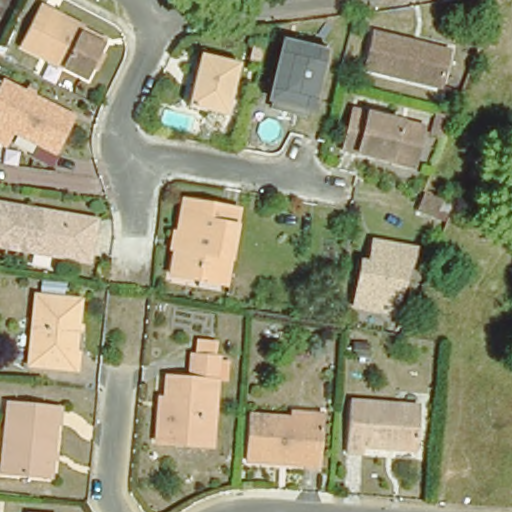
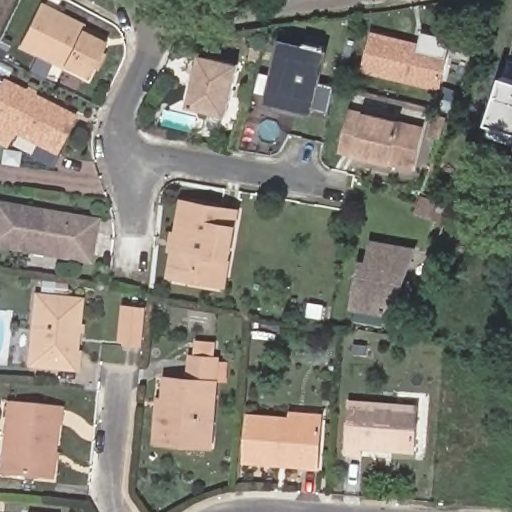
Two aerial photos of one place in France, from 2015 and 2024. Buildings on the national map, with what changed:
unchanged [(100,64),(95,75),(25,41),(45,0),(63,9),(89,21),(86,25),(114,38),(111,43),(108,48),(114,50),(105,68),(100,64)]
unchanged [(373,58),(383,20),(432,33),(460,40),(458,48),(450,78),(373,58)]
unchanged [(270,102),(272,93),(285,40),(305,45),(307,38),(327,42),(312,102),(310,111),(270,102)]
unchanged [(201,50),(240,60),(226,114),(187,104),(201,50)]
new [(494,124),(488,123),(503,75),(508,60),(512,61),(512,141),(491,134),(494,124)]
unchanged [(58,149),(14,127),(7,141),(0,137),(0,84),(3,76),(10,80),(76,112),(58,149)]
unchanged [(340,150),(351,108),(423,126),(412,169),(389,164),(373,159),(340,150)]
unchanged [(450,120),(445,144),(451,145),(444,170),(450,172),(444,200),(450,202),(446,221),(418,213),(423,194),(429,176),(437,141),(429,139),(437,116),(450,120)]
unchanged [(200,279),(173,273),(177,247),(173,246),(175,230),(180,231),(186,198),(240,209),(229,277),(228,284),(200,279)]
unchanged [(101,216),(94,257),(0,241),(0,204),(1,199),(101,216)]
unchanged [(409,251),(386,314),(348,309),(356,265),(363,267),(368,244),(409,251)]
unchanged [(441,298),(424,291),(430,273),(448,279),(441,298)]
unchanged [(71,368),(67,369),(24,364),(29,295),(73,299),(71,323),(71,324),(76,324),(75,332),(70,331),(69,350),(68,352),(73,352),(71,368)]
unchanged [(145,439),(147,408),(148,397),(155,397),(157,377),(179,379),(181,353),(183,340),(201,341),(200,355),(208,356),(202,434),(201,444),(164,441),(145,439)]
unchanged [(348,344),(362,345),(361,358),(347,357),(348,344)]
unchanged [(346,453),(349,418),(350,403),(418,408),(416,449),(365,446),(364,454),(346,453)]
unchanged [(49,464),(44,464),(42,481),(0,476),(0,418),(1,409),(49,414),(54,414),(53,430),(48,429),(45,458),(49,458),(49,464)]
unchanged [(246,458),(249,415),(291,419),(291,411),(323,413),(323,421),(320,469),(304,468),(246,463),(246,458)]

